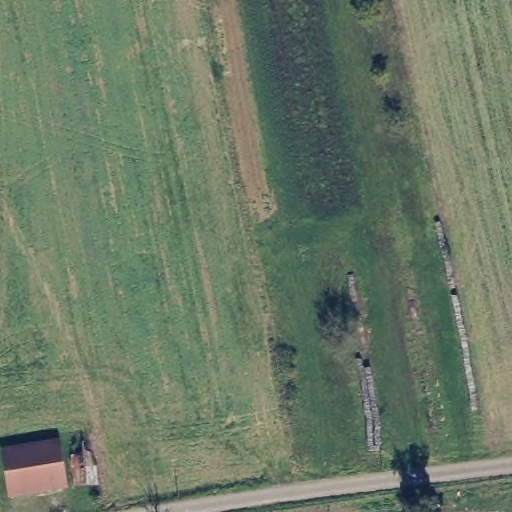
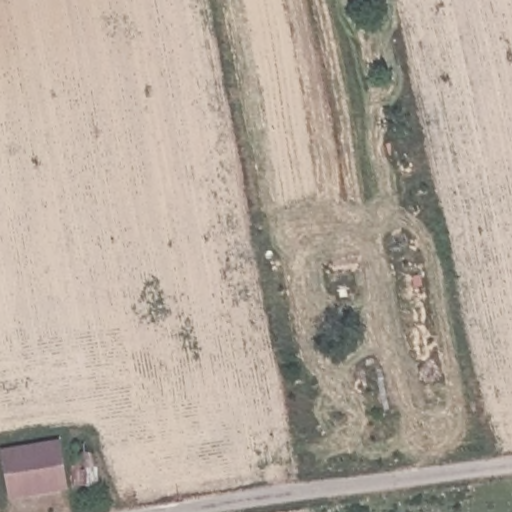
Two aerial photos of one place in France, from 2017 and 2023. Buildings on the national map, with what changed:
unchanged [(54,443),(62,488),(11,497),(2,453),(54,443)]

